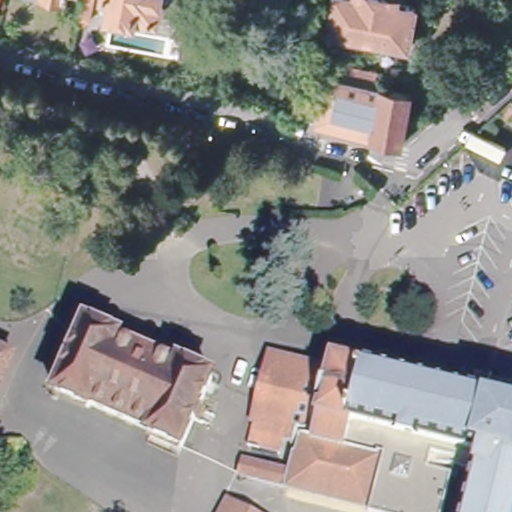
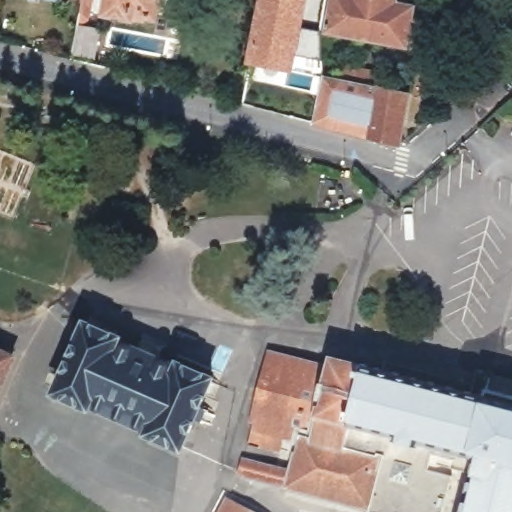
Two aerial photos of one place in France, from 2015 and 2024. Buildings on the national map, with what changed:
unchanged [(61,2),(53,0),(62,0),(61,2)]
unchanged [(137,13),(136,18),(112,14),(115,0),(163,0),(159,17),(137,13)]
new [(257,0),(309,0),(303,28),(321,32),(319,61),(298,57),(296,72),(244,64),(257,0)]
unchanged [(368,41),(327,32),(333,0),(375,0),(368,41)]
unchanged [(375,0),(398,0),(397,4),(416,7),(408,48),(368,41),(375,0)]
unchanged [(346,72),(361,74),(376,77),(374,87),(379,88),(380,86),(410,92),(400,145),(313,122),(323,77),(344,81),(346,72)]
unchanged [(147,429),(87,401),(86,403),(53,388),(86,321),(118,336),(116,340),(137,350),(142,339),(160,347),(155,357),(176,367),(178,363),(211,379),(178,447),(146,432),(147,429)]
unchanged [(295,452),(248,440),(270,354),(329,367),(309,440),(347,453),(359,429),(454,452),(452,460),(458,461),(445,512),(370,512),(370,509),(239,473),(244,457),(290,470),(295,452)]
unchanged [(455,449),(454,452),(359,429),(347,453),(309,440),(329,367),(340,361),(481,398),(485,385),(512,392),(512,512),(466,512),(480,456),(455,449)]
unchanged [(250,512),(219,512),(226,499),(250,512)]

